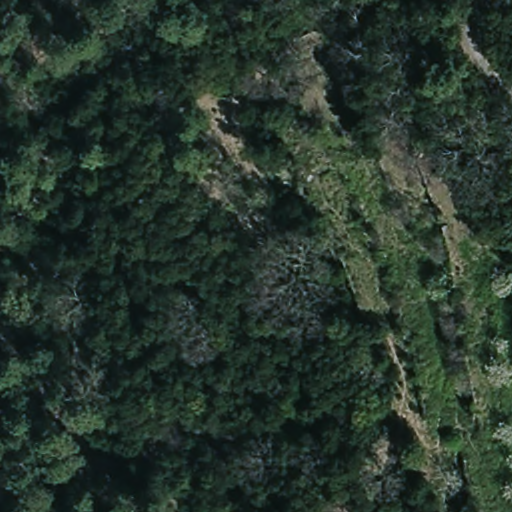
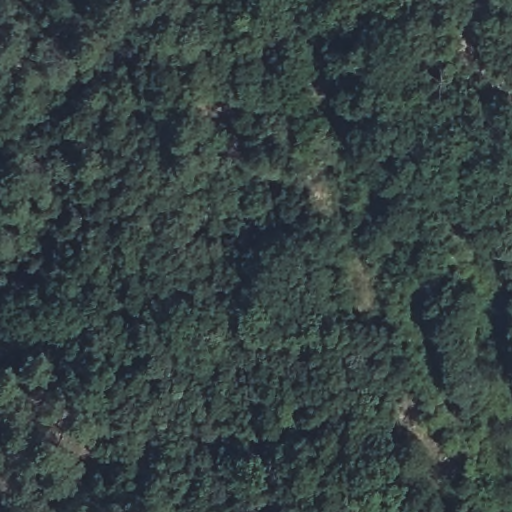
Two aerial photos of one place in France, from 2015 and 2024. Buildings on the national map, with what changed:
[]

